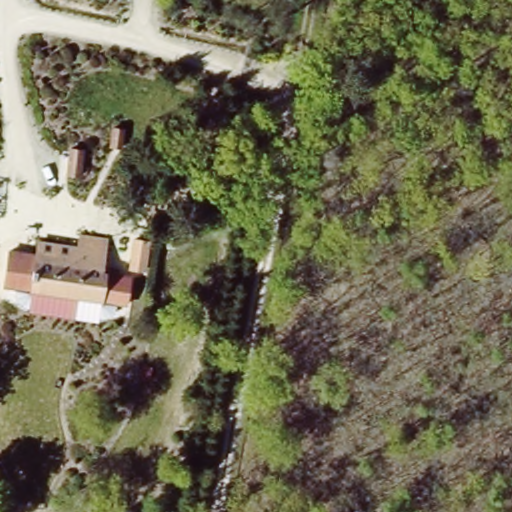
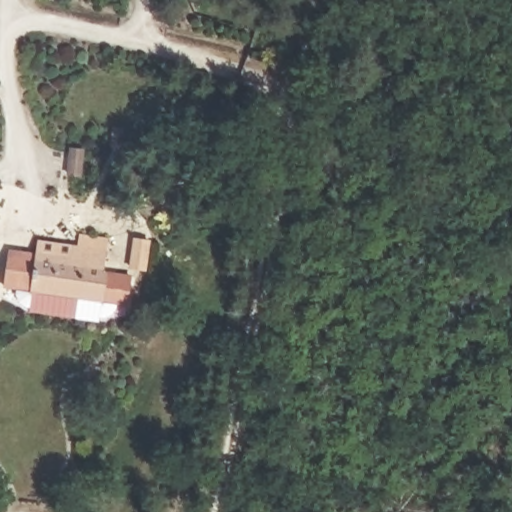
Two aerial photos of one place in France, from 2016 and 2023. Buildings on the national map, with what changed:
unchanged [(160,116),(211,127),(204,161),(152,150),(160,116)]
unchanged [(36,251),(40,237),(78,244),(81,227),(111,233),(106,268),(130,271),(127,301),(105,298),(101,321),(29,311),(32,293),(2,288),(9,247),(36,251)]

